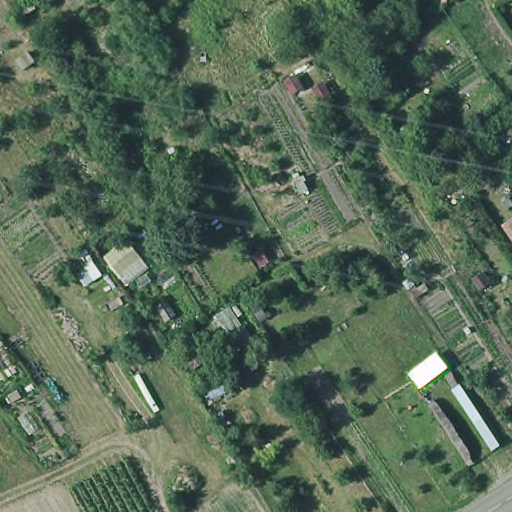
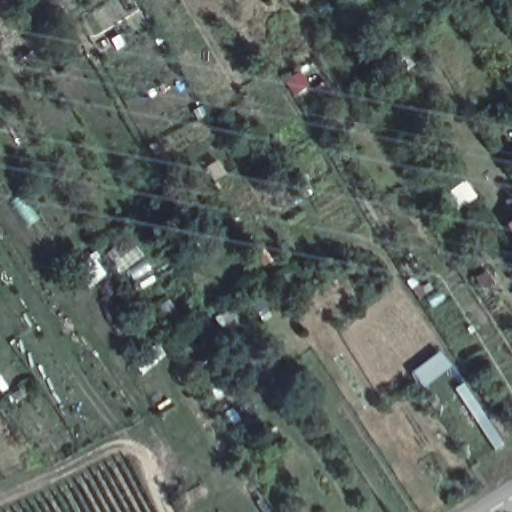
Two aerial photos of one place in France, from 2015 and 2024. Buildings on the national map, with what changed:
unchanged [(512,204),(512,207),(508,210),(503,203),(509,199),(512,204)]
unchanged [(511,221),(512,220),(512,222),(511,221)]

